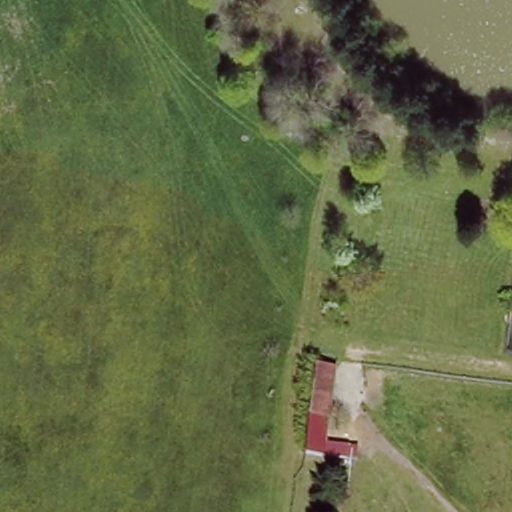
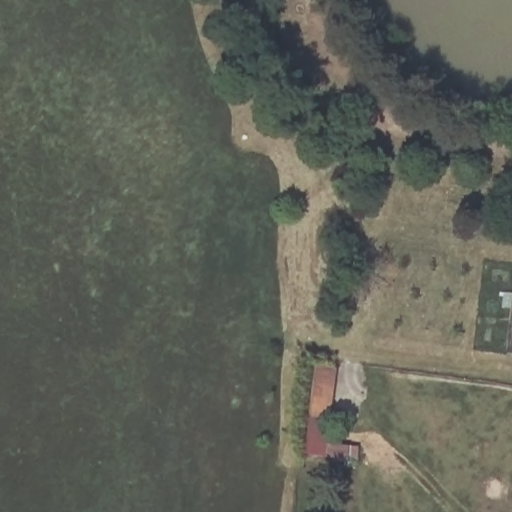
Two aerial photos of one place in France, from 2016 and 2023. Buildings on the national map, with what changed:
unchanged [(332,359),(327,418),(309,417),(315,358),(332,359)]
unchanged [(327,418),(330,418),(327,443),(360,447),(357,461),(305,455),(309,417),(327,418)]

